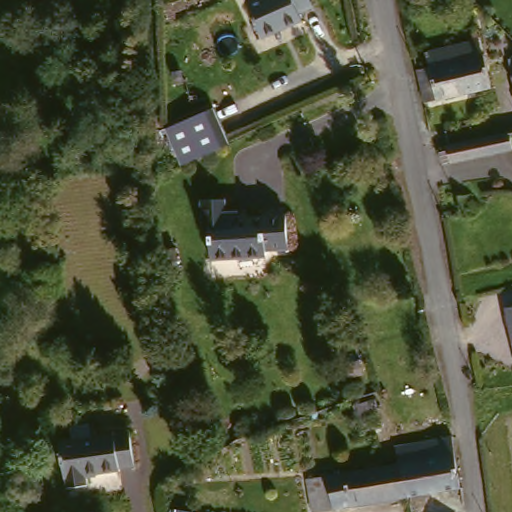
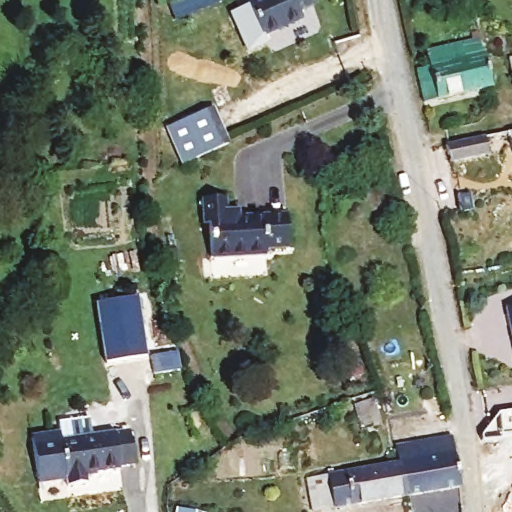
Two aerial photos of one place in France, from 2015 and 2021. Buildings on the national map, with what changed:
unchanged [(247,0),(302,0),(293,3),(297,12),(259,27),(247,0)]
unchanged [(426,64),(425,49),(477,40),(480,40),(487,86),(422,100),(416,66),(426,64)]
unchanged [(512,67),(512,85),(507,67),(512,67)]
unchanged [(167,124),(214,103),(230,140),(195,154),(182,160),(167,124)]
unchanged [(490,135),(506,131),(509,146),(448,158),(445,144),(490,135)]
unchanged [(231,189),(232,203),(246,203),(247,210),(271,209),(271,204),(292,204),(292,241),(274,241),(274,246),(219,248),(216,216),(211,216),(210,191),(231,189)]
new [(139,297),(149,357),(105,364),(95,304),(139,297)]
unchanged [(512,305),(512,319),(510,305),(512,305)]
unchanged [(369,399),(374,412),(357,417),(352,405),(369,399)]
unchanged [(134,465),(85,474),(86,483),(67,486),(66,478),(60,479),(53,443),(67,440),(65,426),(85,423),(86,437),(125,430),(134,465)]
unchanged [(451,437),(453,441),(459,490),(407,498),(395,464),(393,447),(451,437)]
unchanged [(313,512),(308,479),(395,464),(407,498),(316,512),(313,512)]

